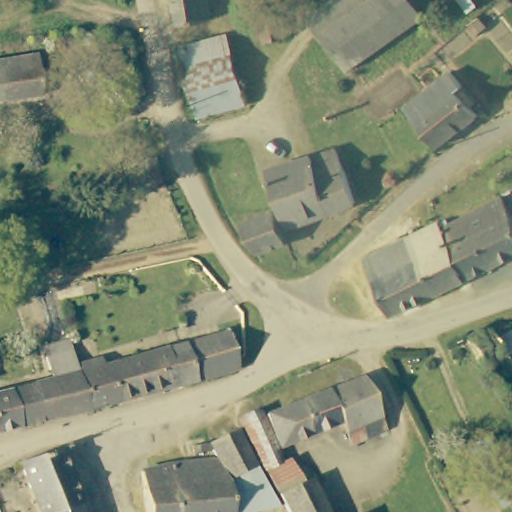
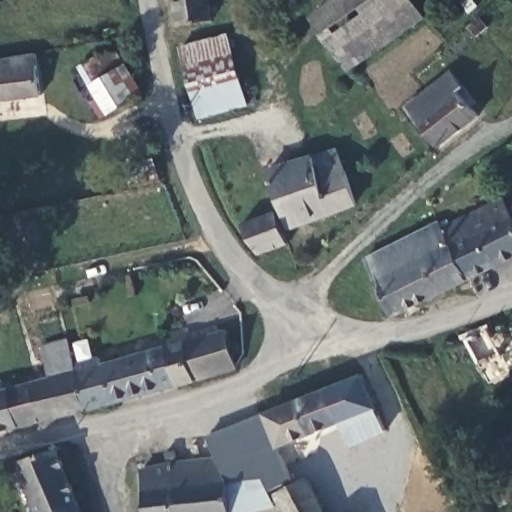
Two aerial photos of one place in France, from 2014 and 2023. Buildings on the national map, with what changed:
unchanged [(180,24),(176,0),(208,0),(211,17),(180,24)]
unchanged [(411,0),(416,7),(343,58),(320,25),(355,0),(411,0)]
unchanged [(229,42),(243,95),(196,107),(181,57),(229,42)]
unchanged [(42,97),(0,103),(0,60),(35,55),(42,97)]
unchanged [(90,101),(96,97),(88,84),(121,64),(138,92),(106,112),(100,117),(90,101)]
unchanged [(451,75),(464,90),(458,95),(476,115),(453,132),(424,97),(451,75)]
unchanged [(424,97),(453,132),(435,147),(405,110),(424,97)]
unchanged [(335,145),(336,150),(342,167),(345,167),(354,201),(290,226),(270,170),(335,145)]
unchanged [(504,195),(512,212),(512,256),(470,277),(444,227),(504,195)]
unchanged [(279,209),(289,240),(262,251),(243,222),(279,209)]
unchanged [(441,221),(444,227),(470,277),(394,315),(367,261),(441,221)]
unchanged [(226,332),(235,367),(176,382),(168,347),(226,332)]
unchanged [(33,382),(51,377),(44,346),(70,338),(78,371),(87,406),(42,417),(21,423),(0,427),(0,391),(11,388),(33,382)]
unchanged [(136,356),(168,347),(176,382),(145,391),(123,397),(87,406),(78,371),(115,362),(136,356)]
unchanged [(267,410),(363,373),(387,424),(354,440),(343,417),(281,443),(267,410)]
unchanged [(512,440),(512,497),(504,502),(490,477),(486,480),(467,446),(480,438),(485,447),(509,433),(512,440)]
unchanged [(17,458),(56,443),(58,447),(76,501),(80,512),(37,512),(17,458)]
unchanged [(175,461),(175,458),(219,455),(229,475),(236,512),(177,512),(175,461)]
unchanged [(229,475),(255,462),(259,460),(279,502),(238,512),(236,512),(229,475)]
unchanged [(126,472),(175,461),(177,512),(133,512),(126,472)]
unchanged [(281,490),(303,478),(311,474),(331,512),(292,512),(281,490)]

